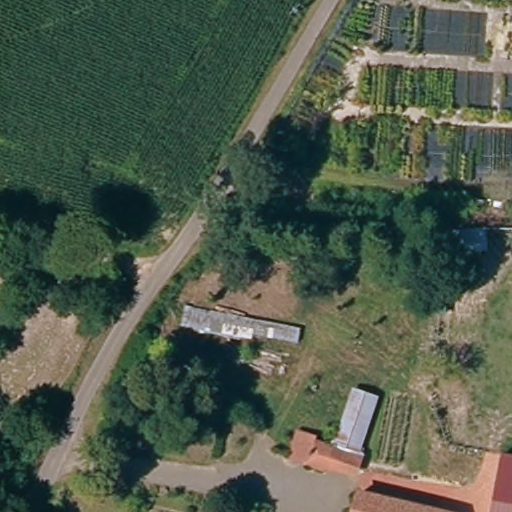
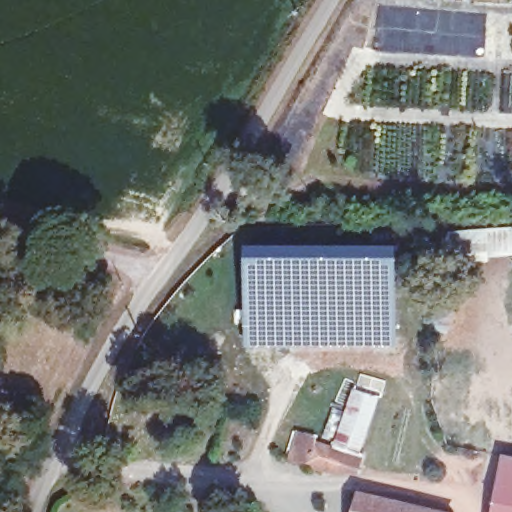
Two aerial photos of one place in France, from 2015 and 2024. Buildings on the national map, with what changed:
new [(512,256),(453,261),(450,231),(512,227),(512,256)]
new [(254,255),(309,255),(357,253),(357,251),(398,249),(394,348),(245,348),(244,255),(254,255)]
unchanged [(372,378),(358,453),(338,450),(354,373),(372,378)]
unchanged [(332,473),(301,467),(304,449),(336,456),(332,473)]
new [(502,453),(512,455),(512,512),(492,512),(502,453)]
unchanged [(356,500),(360,475),(424,487),(419,512),(356,500)]
unchanged [(462,493),(459,512),(421,512),(419,512),(424,487),(462,493)]
unchanged [(356,500),(419,512),(421,512),(354,512),(356,500)]

